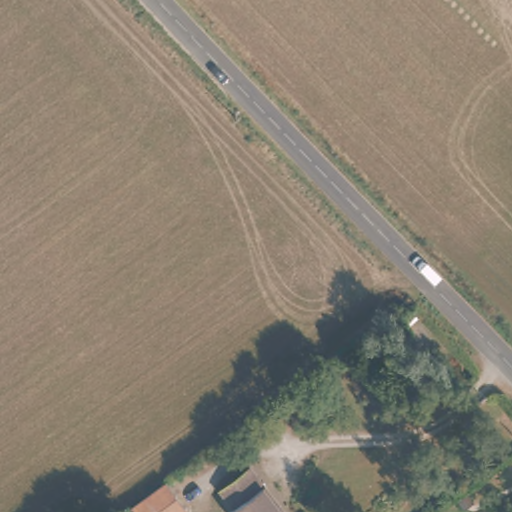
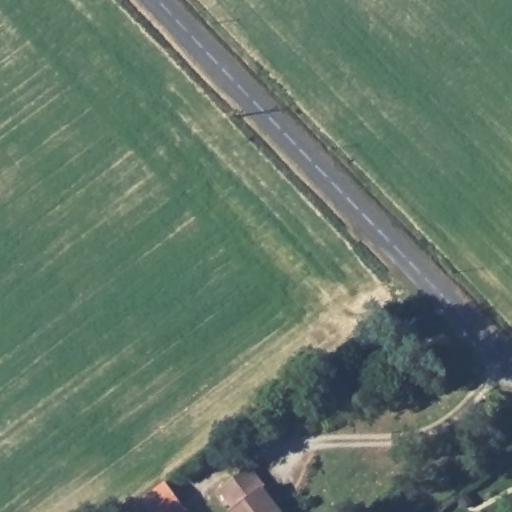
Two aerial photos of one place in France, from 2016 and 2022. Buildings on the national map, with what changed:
unchanged [(282,507),(288,503),(295,512),(232,512),(231,510),(235,507),(220,486),(254,461),(270,482),(265,486),(282,507)]
unchanged [(166,478),(189,506),(181,512),(140,512),(132,503),(166,478)]

